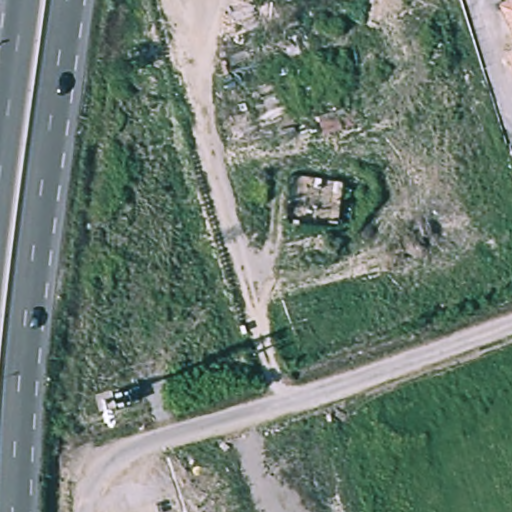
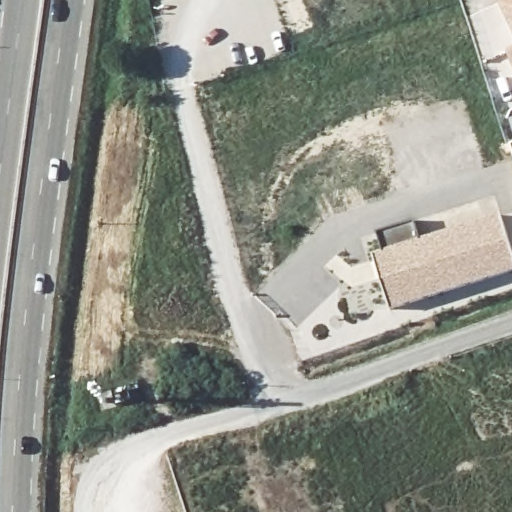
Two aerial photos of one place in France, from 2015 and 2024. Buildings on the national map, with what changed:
unchanged [(512,39),(493,0),(512,0),(512,39)]
unchanged [(512,47),(512,77),(500,54),(512,47)]
new [(512,249),(512,274),(390,311),(372,256),(382,253),(377,233),(414,222),(420,240),(500,216),(512,249)]

